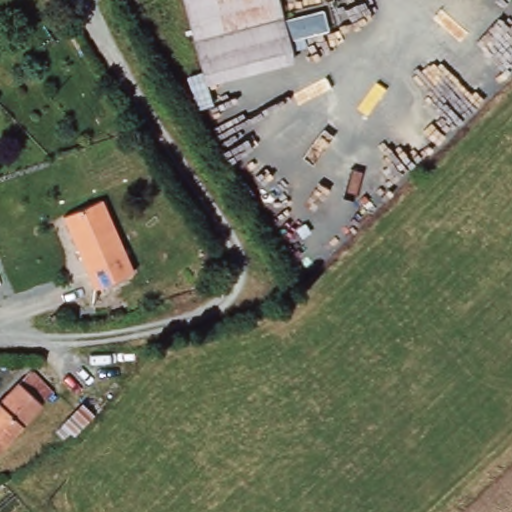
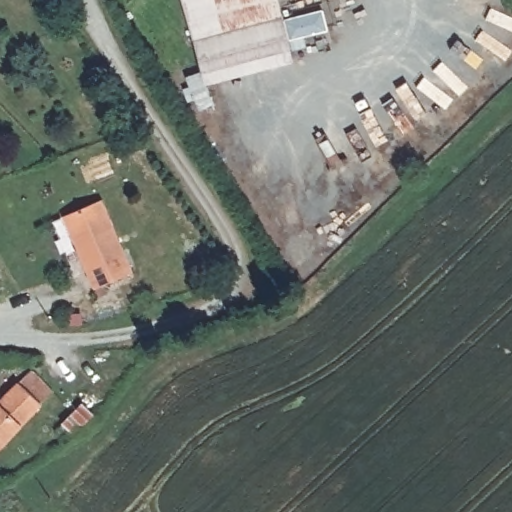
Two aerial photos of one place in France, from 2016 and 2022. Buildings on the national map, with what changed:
unchanged [(198,44),(186,0),(281,0),(287,20),(198,44)]
unchanged [(297,56),(208,80),(198,44),(287,20),(297,56)]
unchanged [(133,268),(95,284),(63,212),(101,195),(133,268)]
unchanged [(0,445),(0,400),(31,367),(53,389),(0,445)]
unchanged [(75,438),(64,426),(84,405),(96,418),(75,438)]
unchanged [(13,493),(29,512),(12,512),(4,503),(13,493)]

